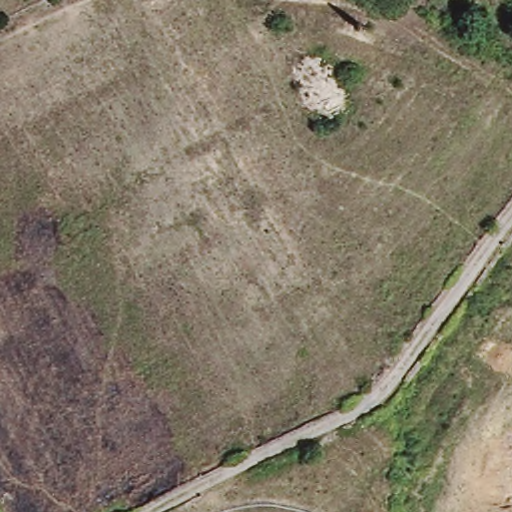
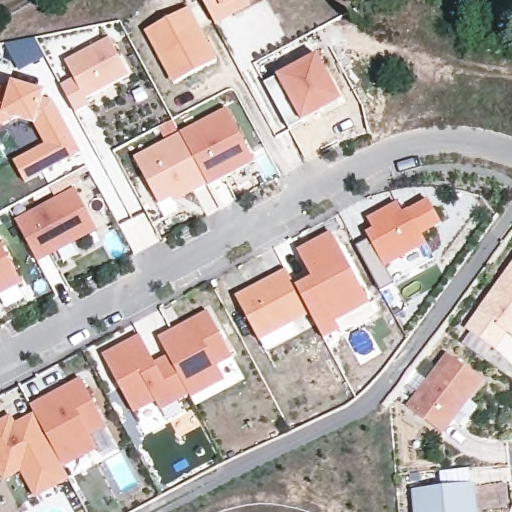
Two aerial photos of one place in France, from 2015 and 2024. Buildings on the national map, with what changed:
new [(242,1),(225,10),(210,18),(200,0),(221,0),(220,1),(221,0),(241,0),(242,1)]
new [(188,6),(217,60),(175,83),(146,29),(188,6)]
new [(110,38),(131,77),(89,101),(91,107),(78,114),(62,86),(75,81),(65,61),(110,38)]
demolished [(321,103),(305,79),(298,66),(315,52),(324,64),(338,91),(321,103)]
new [(306,119),(288,128),(263,82),(316,54),(337,93),(341,100),(306,119)]
new [(12,81),(47,92),(45,97),(54,101),(82,154),(25,184),(14,162),(45,144),(35,126),(16,121),(0,127),(0,88),(12,81)]
new [(227,108),(257,163),(176,205),(173,199),(161,206),(135,158),(227,108)]
new [(75,187),(98,232),(40,263),(18,220),(75,187)]
new [(370,241),(368,236),(375,233),(370,222),(399,206),(405,216),(430,203),(442,225),(423,236),(428,246),(386,268),(396,286),(383,294),(358,248),(370,241)]
new [(314,279),(299,253),(333,234),(371,303),(336,322),(341,330),(325,339),(312,315),(297,288),(314,279)]
new [(24,284),(0,297),(0,240),(24,284)]
new [(497,351),(466,328),(512,264),(512,338),(507,335),(497,351)]
new [(288,271),(297,288),(312,315),(261,343),(237,298),(288,271)]
new [(103,355),(139,335),(155,361),(168,356),(159,338),(209,311),(234,359),(218,368),(225,379),(192,400),(191,395),(162,411),(157,403),(136,416),(103,355)]
new [(486,382),(444,434),(407,406),(447,354),(486,382)]
new [(32,406),(79,377),(107,428),(92,437),(98,449),(66,469),(35,413),(32,406)]
new [(64,466),(71,481),(36,500),(22,473),(5,483),(0,473),(0,420),(12,414),(16,423),(35,413),(64,466)]
new [(415,512),(413,491),(476,483),(479,512),(415,512)]

